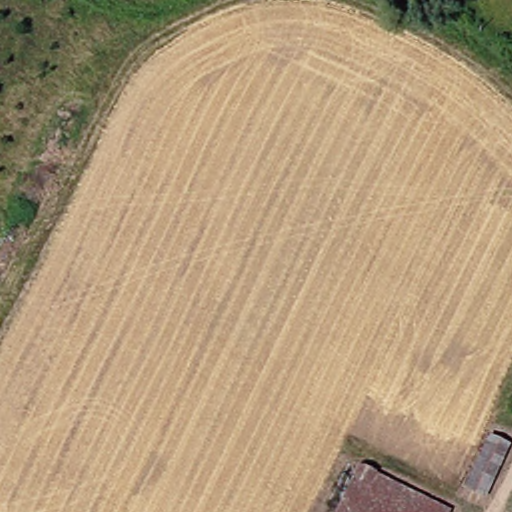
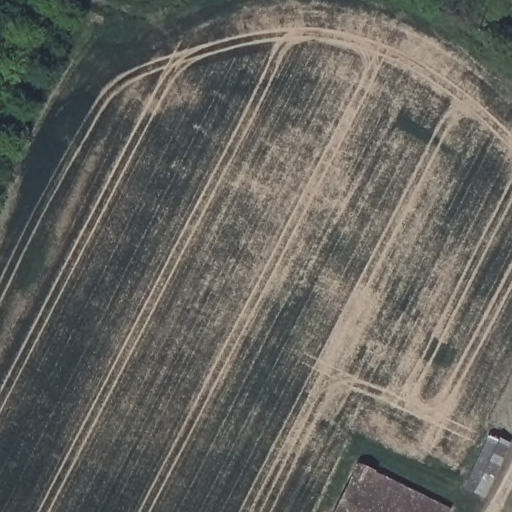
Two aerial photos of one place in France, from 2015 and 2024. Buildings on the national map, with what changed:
unchanged [(488,496),(471,490),(495,439),(511,446),(488,496)]
unchanged [(346,511),(369,463),(446,504),(459,512),(336,512),(338,508),(346,511)]

